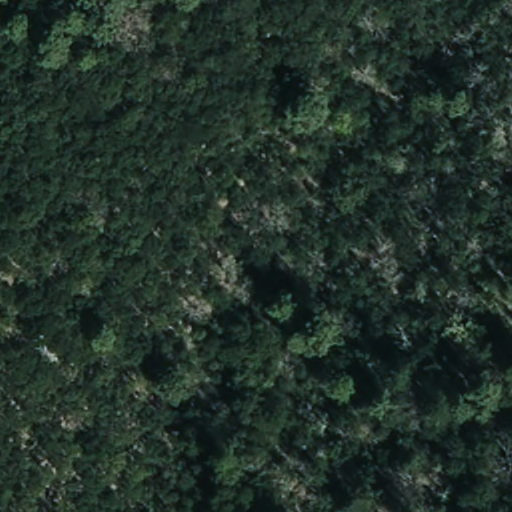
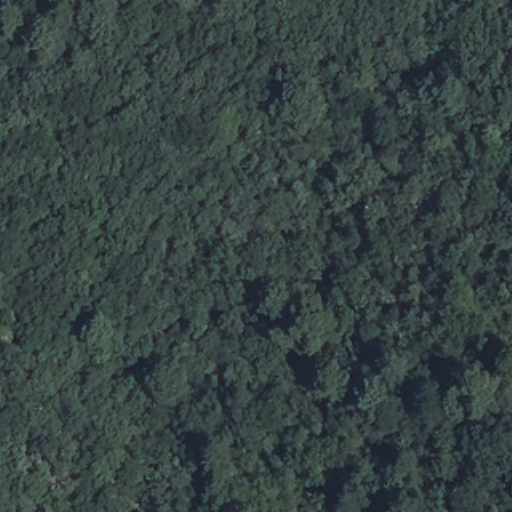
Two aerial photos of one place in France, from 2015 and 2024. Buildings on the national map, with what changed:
[]

